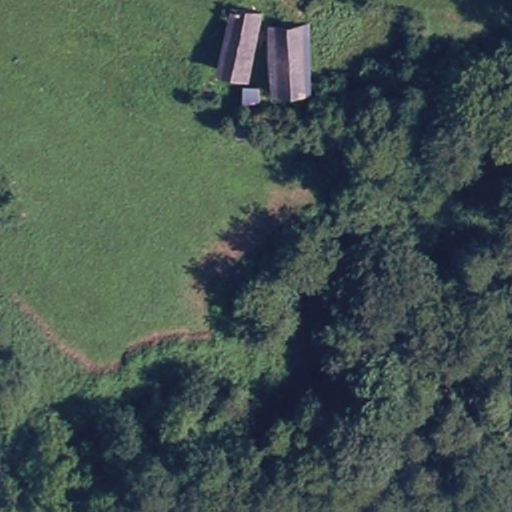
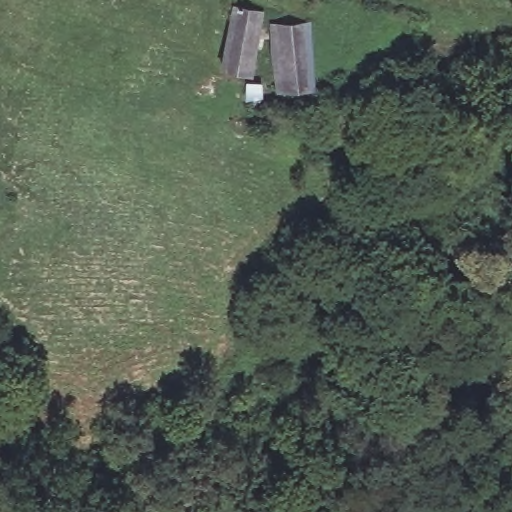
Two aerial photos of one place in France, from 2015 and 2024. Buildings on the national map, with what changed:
unchanged [(263,12),(255,75),(220,73),(226,9),(263,12)]
unchanged [(315,86),(277,91),(271,32),(309,27),(315,86)]
unchanged [(261,104),(249,103),(252,85),(265,85),(261,104)]

